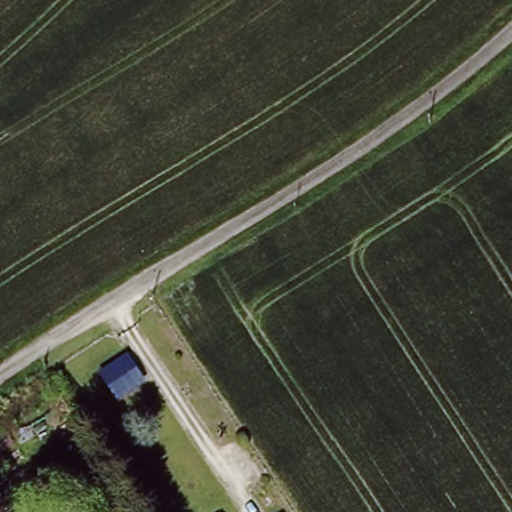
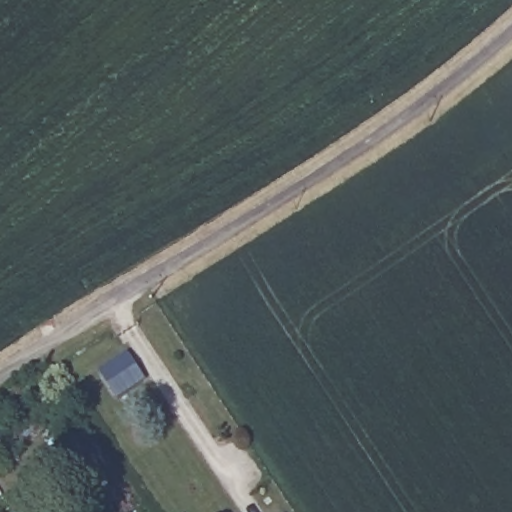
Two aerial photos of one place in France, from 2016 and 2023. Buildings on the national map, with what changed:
unchanged [(125,348),(147,375),(120,397),(100,368),(125,348)]
unchanged [(35,512),(16,512),(30,504),(35,512)]

